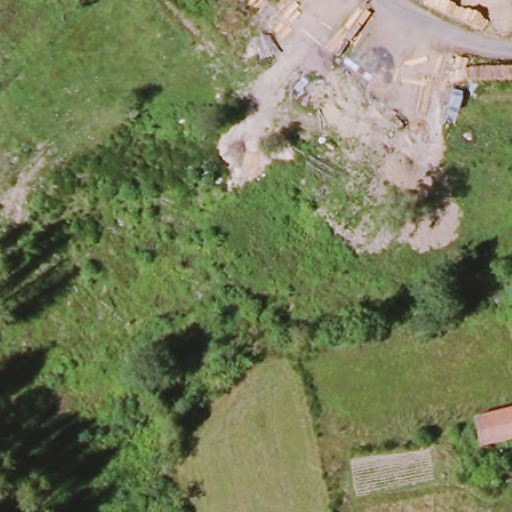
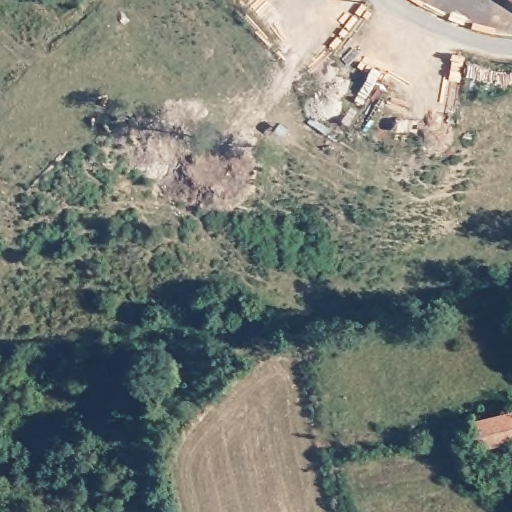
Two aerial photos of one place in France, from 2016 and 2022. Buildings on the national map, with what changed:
unchanged [(512,432),(512,437),(478,445),(475,422),(508,412),(512,432)]

